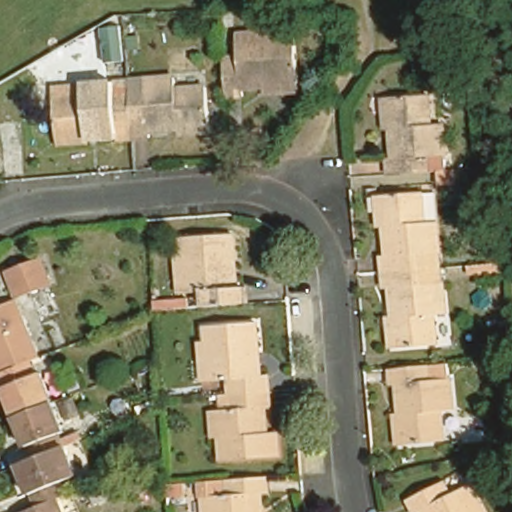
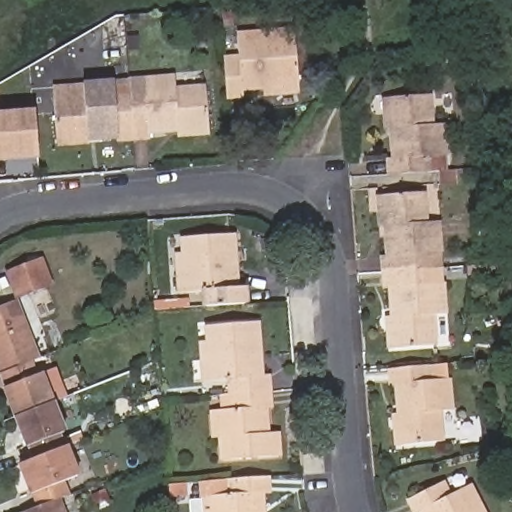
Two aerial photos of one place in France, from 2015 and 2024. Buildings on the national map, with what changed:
unchanged [(264,99),(263,90),(241,93),(242,101),(228,102),(224,62),(238,60),(236,38),(294,31),(299,86),(300,95),(264,99)]
unchanged [(182,138),(181,130),(156,134),(156,139),(141,140),(137,97),(149,96),(147,79),(178,75),(180,87),(208,84),(213,127),(213,134),(182,138)]
unchanged [(60,149),(59,141),(54,100),(86,98),(84,84),(115,80),(117,99),(137,97),(141,140),(121,141),(121,135),(91,138),(92,146),(60,149)]
unchanged [(389,162),(396,161),(394,133),(387,134),(385,101),(392,100),(431,98),(433,128),(446,126),(448,157),(429,159),(429,175),(390,179),(389,162)]
new [(34,109),(36,133),(38,159),(0,162),(0,112),(34,109)]
unchanged [(450,172),(452,172),(453,184),(438,185),(437,173),(450,172)]
unchanged [(385,274),(383,260),(392,259),(390,229),(390,228),(381,228),(379,199),(387,199),(426,195),(428,224),(441,223),(444,255),(425,257),(426,270),(394,273),(385,274)]
unchanged [(178,254),(186,254),(185,239),(237,236),(241,287),(248,287),(250,304),(210,308),(210,290),(190,292),(181,292),(178,254)]
new [(12,292),(4,273),(38,259),(47,283),(28,290),(14,297),(12,292)]
unchanged [(388,320),(397,319),(394,287),(386,288),(385,274),(394,273),(426,270),(427,284),(446,283),(448,315),(436,316),(438,346),(399,348),(391,349),(388,320)]
unchanged [(10,301),(16,317),(25,314),(40,356),(31,359),(0,372),(0,370),(0,304),(10,301)]
unchanged [(207,342),(214,341),(213,327),(263,323),(267,377),(276,376),(277,393),(237,396),(236,381),(217,383),(210,383),(207,342)]
unchanged [(51,400),(12,414),(3,387),(6,386),(0,372),(31,359),(36,375),(40,374),(51,400)]
unchanged [(398,420),(407,419),(403,387),(395,388),(393,374),(434,369),(436,384),(455,383),(458,414),(445,416),(448,444),(409,448),(401,449),(398,420)]
unchanged [(278,410),(270,410),(272,436),(281,436),(282,458),(226,463),(225,441),(216,442),(214,413),(224,412),(238,412),(237,396),(277,393),(278,410)]
unchanged [(62,428),(52,432),(59,447),(50,451),(40,455),(33,458),(26,442),(23,443),(12,414),(51,400),(62,428)]
unchanged [(57,502),(56,502),(55,502),(54,503),(39,509),(33,495),(28,498),(23,484),(16,464),(24,461),(29,459),(33,458),(40,455),(50,451),(59,447),(62,446),(75,477),(60,484),(66,498),(57,502)]
unchanged [(206,498),(217,497),(233,497),(233,478),(275,476),(275,494),(267,494),(268,512),(206,512),(206,498)]
unchanged [(425,511),(423,512),(416,512),(410,501),(447,480),(455,494),(473,484),(488,512),(426,512),(425,511)]
unchanged [(39,509),(54,503),(55,502),(59,512),(31,512),(39,509)]

